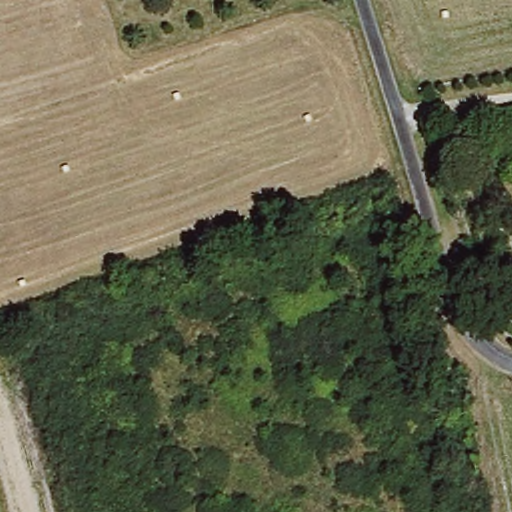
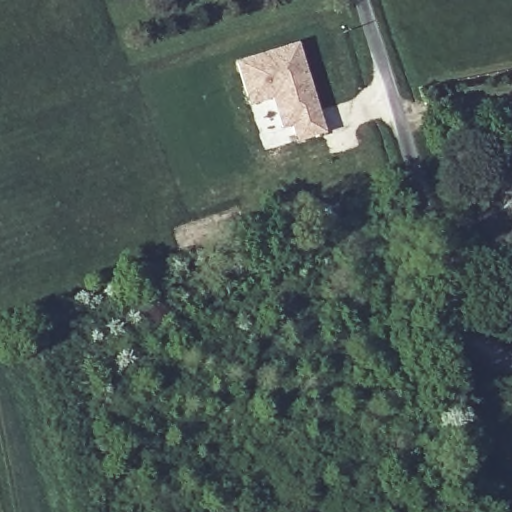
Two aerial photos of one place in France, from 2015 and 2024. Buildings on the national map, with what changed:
new [(292,46),(321,130),(295,139),(290,124),(281,126),(271,100),(248,107),(234,67),(292,46)]

